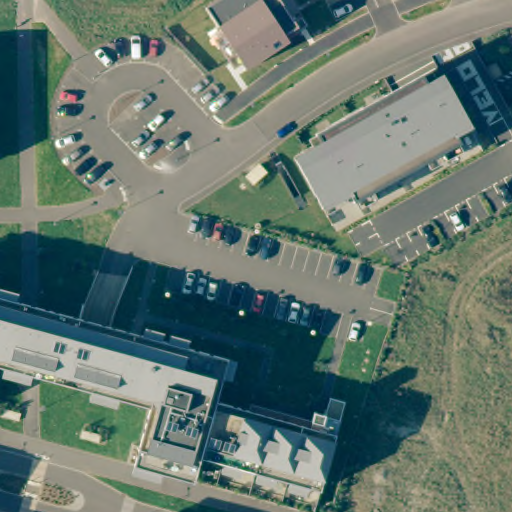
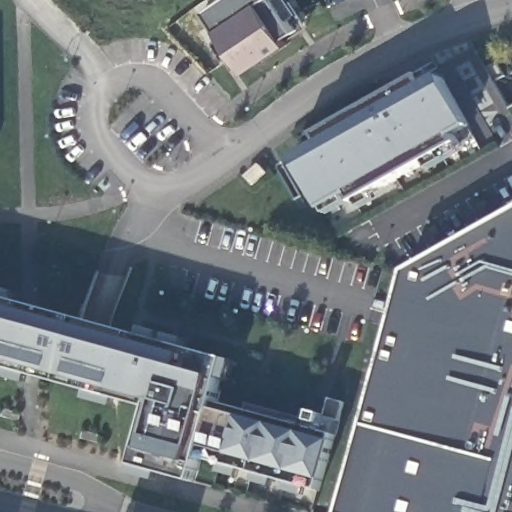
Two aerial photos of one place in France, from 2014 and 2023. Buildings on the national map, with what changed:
unchanged [(218,29),(207,9),(219,0),(289,0),(304,23),(296,30),(285,38),(289,43),(245,73),(218,29)]
unchanged [(294,160),(320,143),(315,135),(425,76),(430,84),(442,78),(471,130),(455,140),(461,153),(431,170),(427,162),(369,195),(373,202),(361,209),(354,202),(352,197),(324,211),(294,160)]
new [(512,214),(512,512),(343,512),(407,272),(512,214)]
unchanged [(194,483),(134,467),(149,409),(0,367),(0,298),(225,362),(215,404),(335,435),(333,444),(322,482),(319,491),(200,460),(194,483)]

